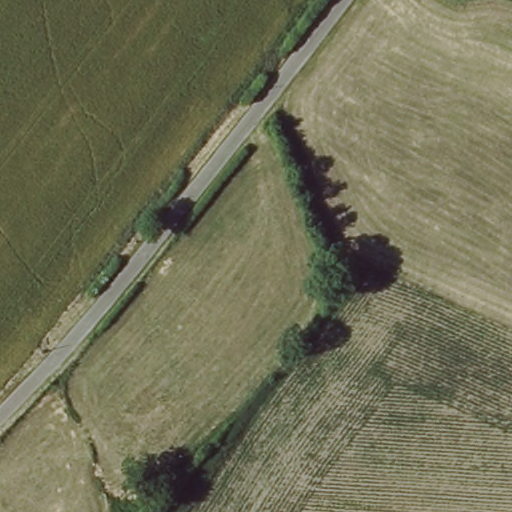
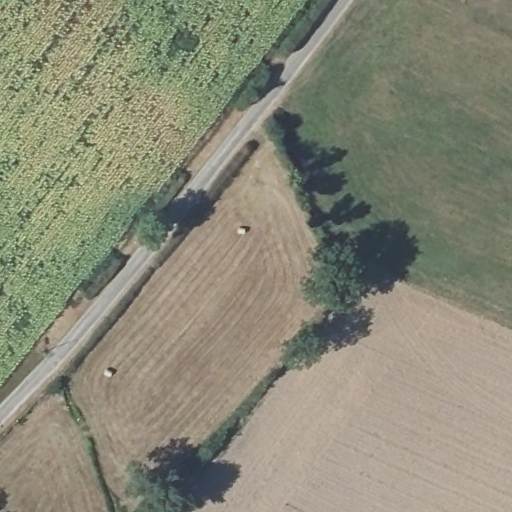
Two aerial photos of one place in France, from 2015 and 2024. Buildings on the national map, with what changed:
[]

